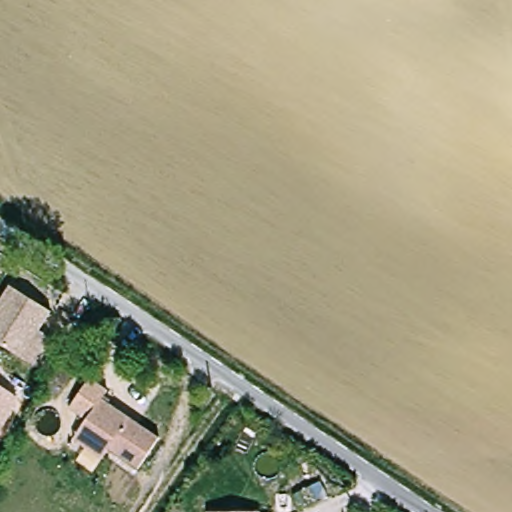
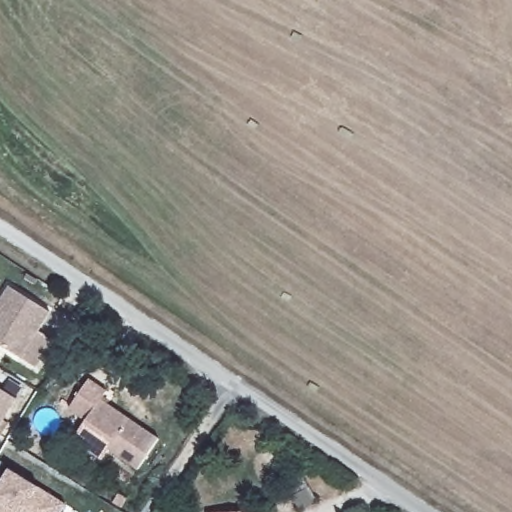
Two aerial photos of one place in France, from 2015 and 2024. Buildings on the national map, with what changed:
unchanged [(52,308),(40,327),(54,337),(36,364),(0,340),(0,300),(12,281),(52,308)]
unchanged [(1,370),(0,371),(0,369),(1,370)]
unchanged [(86,418),(68,407),(88,377),(107,390),(113,394),(108,402),(160,436),(140,467),(110,447),(102,458),(72,438),(80,428),(86,418)]
unchanged [(17,400),(0,427),(0,389),(17,400)]
new [(65,504),(60,512),(0,512),(0,483),(9,469),(65,504)]
unchanged [(256,512),(206,512),(255,511),(256,512)]

